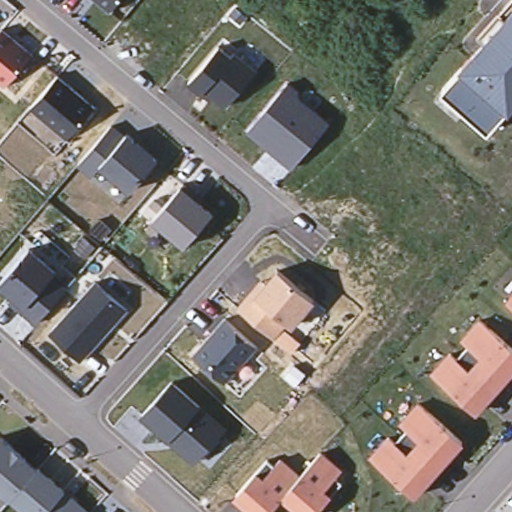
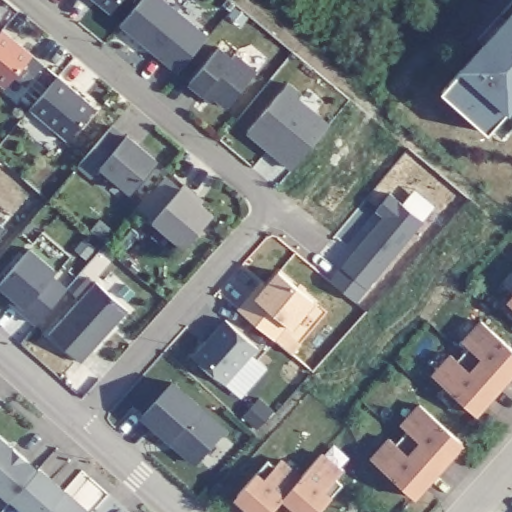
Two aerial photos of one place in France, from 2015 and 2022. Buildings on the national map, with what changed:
unchanged [(94,0),(124,0),(111,14),(94,0)]
new [(142,0),(165,0),(208,35),(178,71),(121,25),(142,0)]
unchanged [(443,91),(512,12),(512,110),(491,132),(443,91)]
unchanged [(36,57),(6,92),(0,87),(0,32),(3,28),(36,57)]
unchanged [(234,58),(238,52),(259,72),(227,110),(213,99),(211,104),(189,85),(220,48),(234,58)]
unchanged [(98,109),(69,141),(30,109),(59,75),(98,109)]
unchanged [(306,95),(304,99),(333,124),(291,172),(246,135),(291,82),(306,95)]
unchanged [(125,140),(131,135),(161,161),(130,196),(101,169),(90,181),(74,166),(113,128),(125,140)]
unchanged [(218,216),(187,251),(153,221),(184,187),(218,216)]
new [(331,280),(383,215),(376,209),(390,192),(423,221),(366,289),(356,301),(331,280)]
new [(3,226),(0,231),(0,224),(3,226)]
unchanged [(61,273),(59,278),(68,287),(34,325),(8,302),(12,296),(0,286),(0,283),(33,247),(61,273)]
unchanged [(264,289),(279,270),(318,304),(294,332),(288,325),(274,341),(236,310),(256,285),(264,289)]
unchanged [(130,310),(82,363),(49,333),(96,281),(130,310)]
unchanged [(512,296),(512,305),(508,300),(512,296)]
unchanged [(261,349),(226,386),(192,357),(227,320),(261,349)]
unchanged [(512,379),(478,415),(430,374),(448,354),(457,360),(469,348),(461,341),(481,320),(512,348),(512,379)]
unchanged [(196,467),(141,418),(176,383),(228,430),(196,467)]
unchanged [(466,445),(418,500),(369,460),(388,438),(397,445),(407,432),(399,425),(419,404),(466,445)]
unchanged [(91,512),(23,512),(0,492),(0,440),(3,437),(91,512)]
unchanged [(320,512),(296,512),(286,503),(277,512),(246,512),(236,502),(269,461),(276,465),(280,458),(302,476),(324,452),(343,471),(336,479),(343,486),(334,497),(320,512)]

